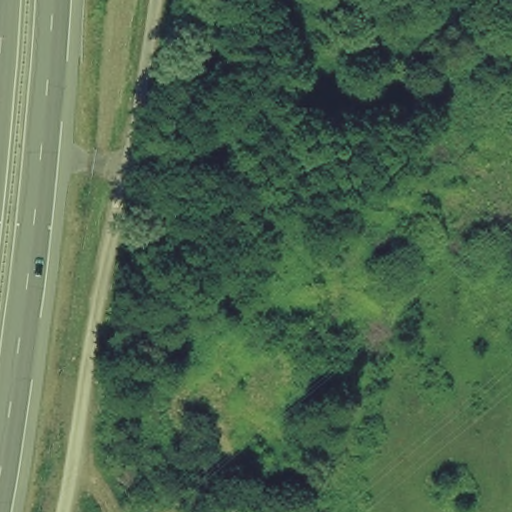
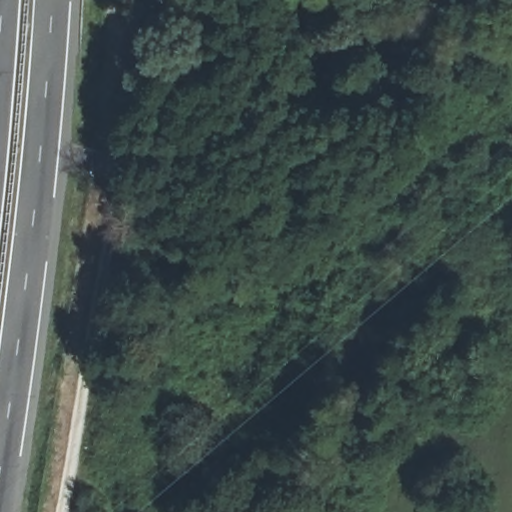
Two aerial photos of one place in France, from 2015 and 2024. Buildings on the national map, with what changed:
unchanged [(225,503),(231,512),(215,512),(225,503)]

